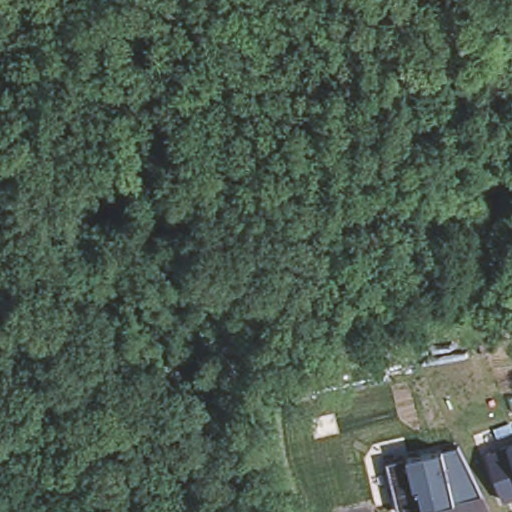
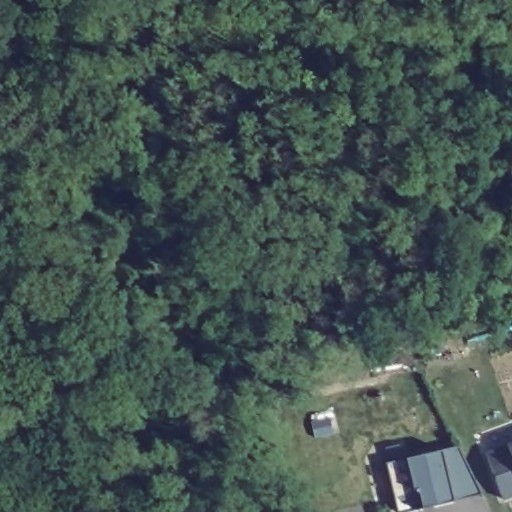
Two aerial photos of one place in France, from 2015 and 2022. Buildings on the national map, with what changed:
unchanged [(501,497),(487,451),(512,442),(512,493),(501,497)]
unchanged [(414,512),(399,512),(387,463),(457,446),(478,494),(414,512)]

